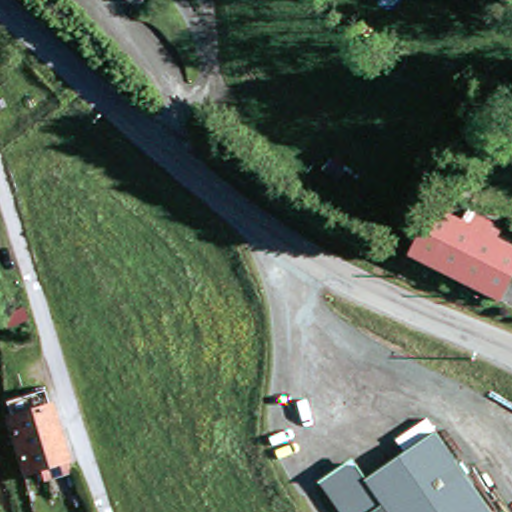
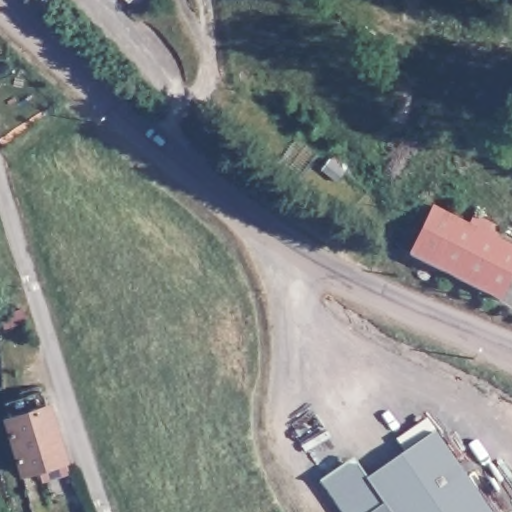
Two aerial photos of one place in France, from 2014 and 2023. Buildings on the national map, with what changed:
unchanged [(411,262),(434,215),(461,228),(466,217),(476,222),(498,232),(493,244),(512,253),(512,280),(501,306),(411,262)]
unchanged [(21,308),(25,321),(6,328),(2,314),(21,308)]
unchanged [(68,473),(43,480),(40,470),(21,475),(3,420),(48,406),(68,473)]
unchanged [(371,512),(344,512),(321,480),(348,460),(359,461),(370,475),(436,429),(494,512),(375,512),(374,510),(371,512)]
unchanged [(375,512),(371,512),(374,510),(375,512)]

